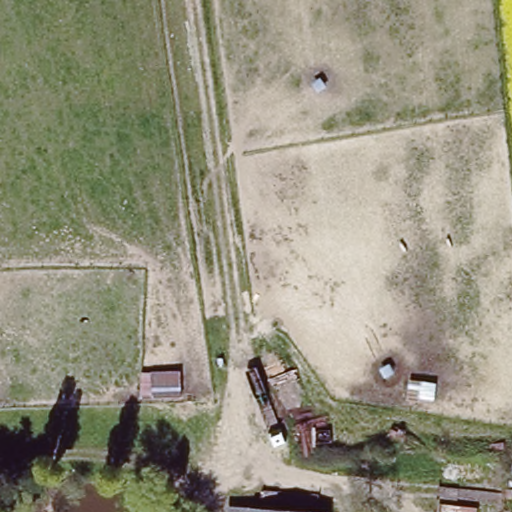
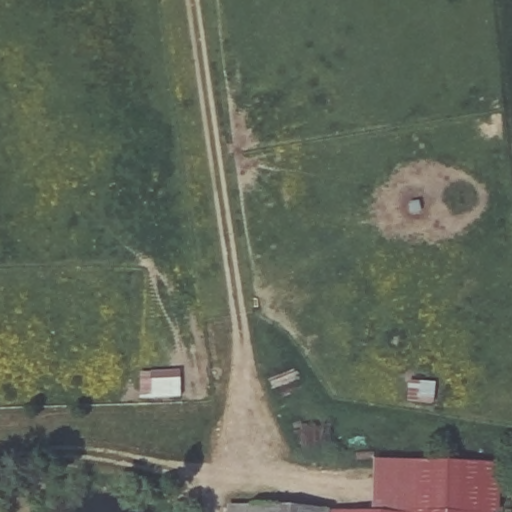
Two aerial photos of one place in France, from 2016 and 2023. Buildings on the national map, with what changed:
new [(139,399),(140,371),(181,369),(183,397),(139,399)]
new [(499,463),(499,512),(371,512),(374,462),(499,463)]
unchanged [(323,512),(230,512),(231,505),(323,512)]

